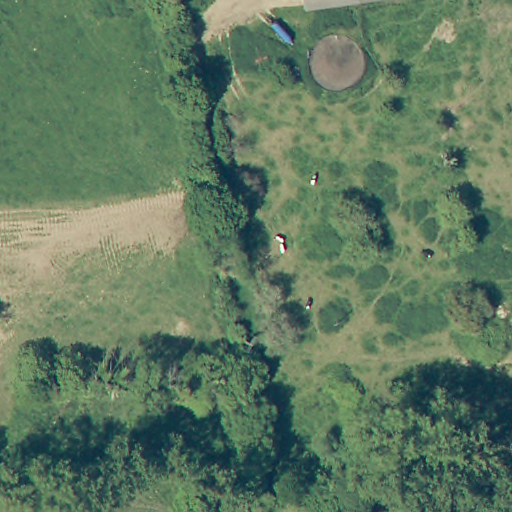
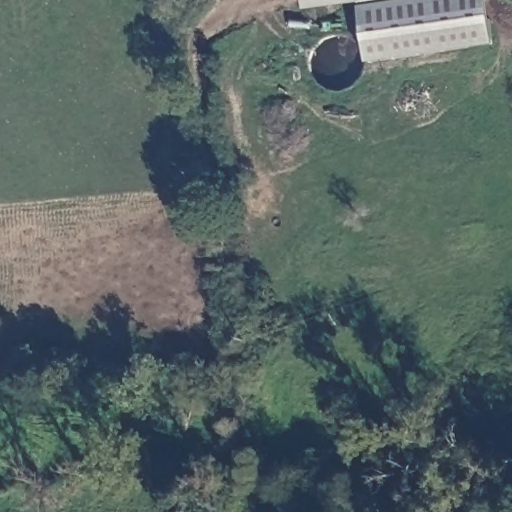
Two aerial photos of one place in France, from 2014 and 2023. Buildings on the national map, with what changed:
unchanged [(304,8),(303,0),(358,0),(304,8)]
new [(366,63),(358,0),(362,0),(487,0),(494,44),(366,63)]

